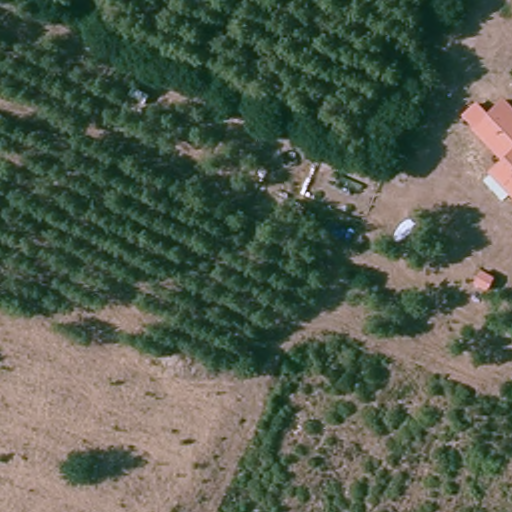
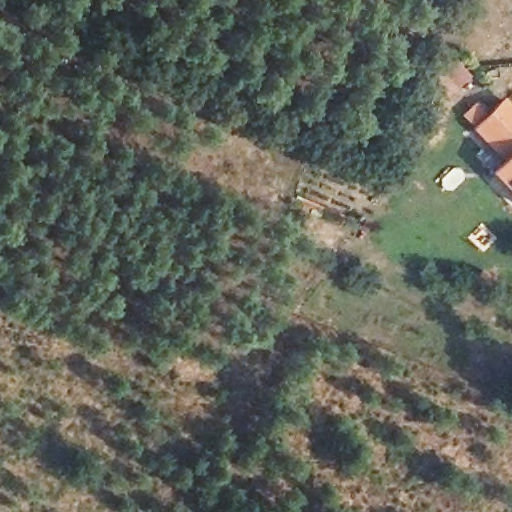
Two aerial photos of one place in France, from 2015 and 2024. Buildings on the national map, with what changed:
unchanged [(512,195),(488,171),(502,159),(472,125),(502,95),(512,105),(512,195)]

